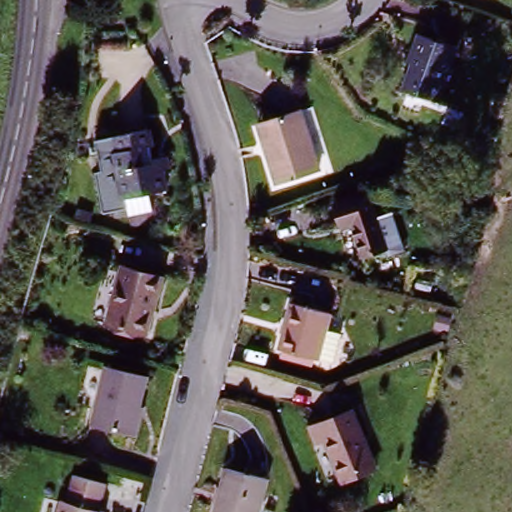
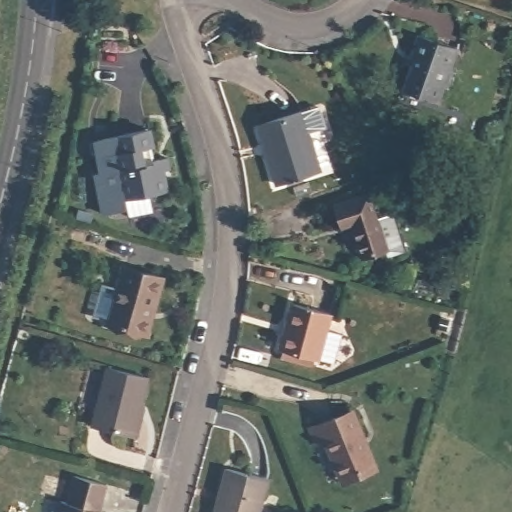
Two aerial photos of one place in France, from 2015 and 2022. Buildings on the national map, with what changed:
unchanged [(416,54),(412,52),(418,33),(457,47),(449,69),(453,70),(448,87),(443,85),(438,102),(403,90),(416,54)]
unchanged [(300,113),(318,169),(277,184),(267,156),(272,155),(262,127),(300,113)]
unchanged [(110,157),(116,156),(113,139),(143,133),(150,165),(157,164),(162,192),(118,200),(110,157)]
unchanged [(402,248),(384,255),(381,245),(360,252),(347,214),(338,217),(333,203),(363,192),(372,216),(390,210),(402,248)]
unchanged [(123,267),(164,278),(148,336),(109,324),(123,267)]
unchanged [(295,307),(331,318),(319,365),(284,354),(295,307)]
unchanged [(107,365),(150,376),(134,436),(93,425),(107,365)]
unchanged [(349,414),(373,471),(340,484),(315,427),(349,414)]
unchanged [(262,477),(253,512),(214,512),(223,468),(262,477)]
unchanged [(95,510),(102,512),(58,512),(60,501),(66,503),(73,477),(102,486),(95,510)]

